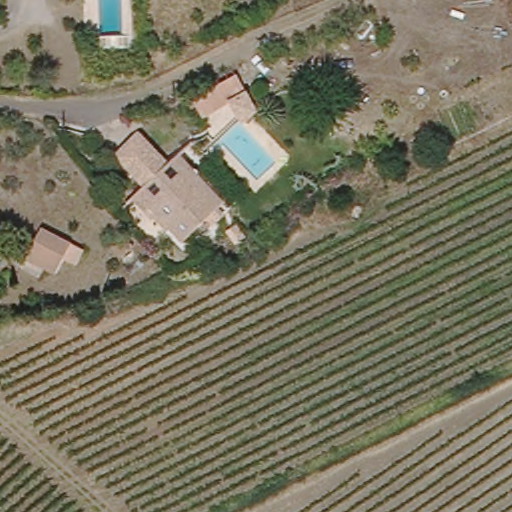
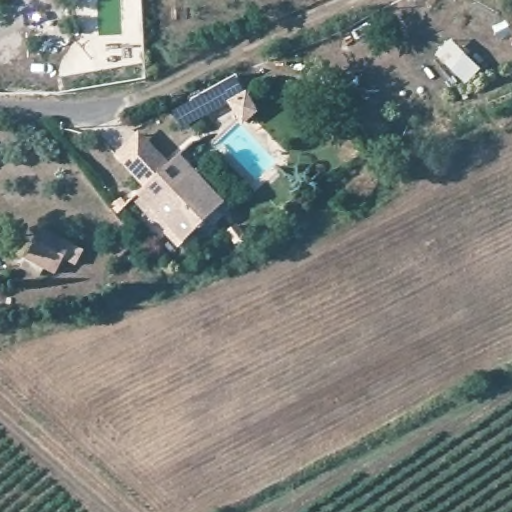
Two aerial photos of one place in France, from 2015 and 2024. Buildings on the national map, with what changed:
unchanged [(238,119),(227,99),(197,115),(187,96),(231,72),(241,91),(251,108),(238,119)]
unchanged [(143,186),(114,156),(139,131),(173,163),(143,186)]
unchanged [(224,208),(182,250),(130,195),(181,156),(224,208)]
unchanged [(61,253),(50,248),(42,266),(29,260),(43,227),(67,238),(61,253)]

